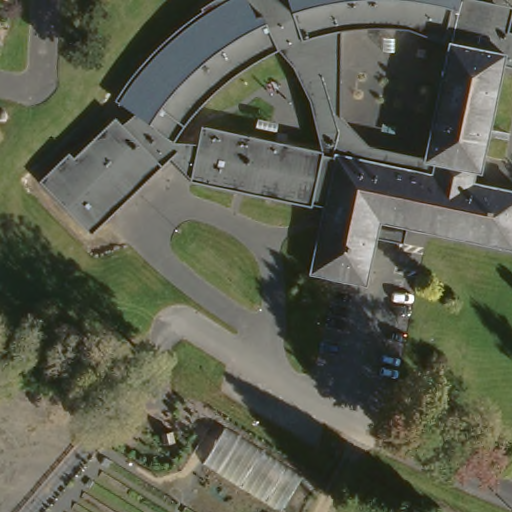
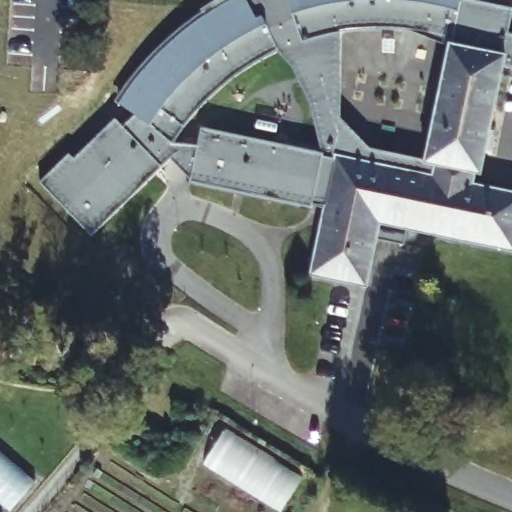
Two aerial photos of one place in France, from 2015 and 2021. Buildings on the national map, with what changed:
unchanged [(89,236),(33,181),(61,151),(69,159),(108,121),(113,125),(126,115),(112,105),(153,49),(198,12),(218,0),(478,0),(509,7),(503,31),(512,33),(512,74),(503,72),(507,51),(448,40),(408,34),(378,34),(358,35),(346,36),(341,114),(369,139),(366,160),(323,151),(285,55),(244,70),(208,100),(174,143),(195,146),(190,170),(166,165),(89,236)]
unchanged [(323,151),(366,160),(369,139),(416,147),(414,172),(421,173),(423,160),(448,40),(507,51),(503,72),(481,171),(475,170),(471,182),(512,191),(512,251),(378,224),(366,282),(309,273),(324,200),(314,200),(311,207),(188,180),(190,170),(195,146),(199,126),(323,151)]
unchanged [(301,476),(278,512),(275,512),(198,462),(223,425),(301,476)]
new [(9,512),(0,504),(0,451),(36,480),(9,512)]

